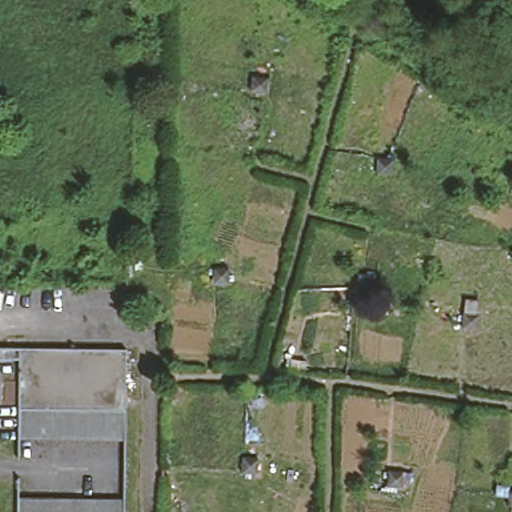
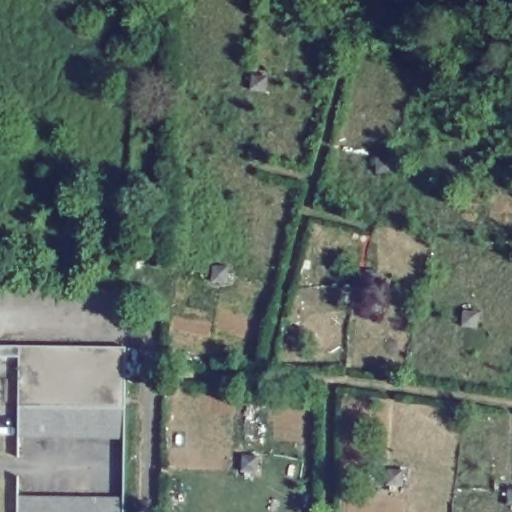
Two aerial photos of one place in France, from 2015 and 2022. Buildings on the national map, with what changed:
unchanged [(86,438),(71,438),(56,438),(41,438),(26,438),(11,438),(11,406),(12,346),(119,348),(118,408),(117,439),(102,438),(86,438)]
unchanged [(10,497),(25,497),(40,497),(56,498),(71,498),(86,498),(101,498),(117,498),(117,512),(10,512),(10,497)]

